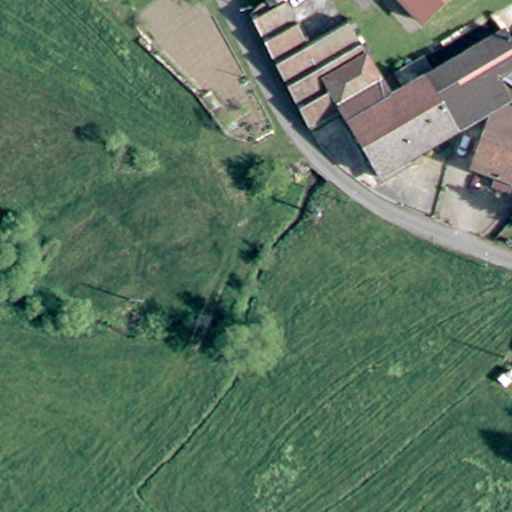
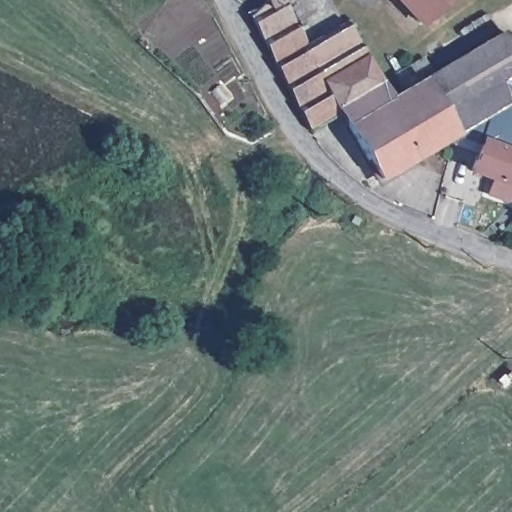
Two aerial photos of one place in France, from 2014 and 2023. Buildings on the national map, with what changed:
unchanged [(276,0),(303,45),(344,24),(388,98),(426,76),(462,56),(501,34),(512,53),(512,95),(510,96),(503,101),(492,110),(461,135),(439,153),(417,170),(394,188),(347,134),(321,150),(298,108),(248,17),(266,0),(276,0)]
unchanged [(446,0),(417,26),(391,0),(446,0)]
unchanged [(509,152),(512,153),(512,185),(467,165),(492,110),(503,101),(512,109),(512,145),(509,152)]
unchanged [(339,201),(348,208),(343,217),(334,210),(339,201)]

